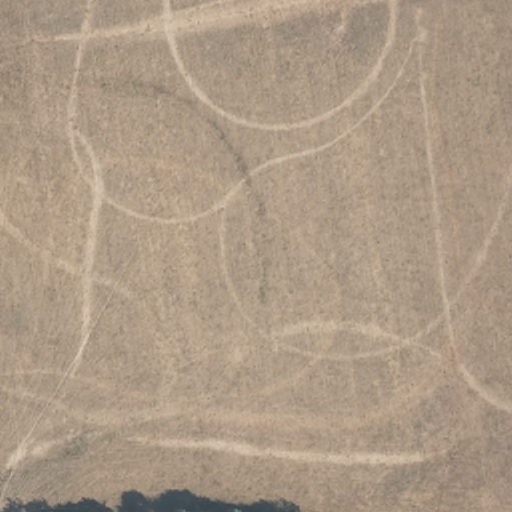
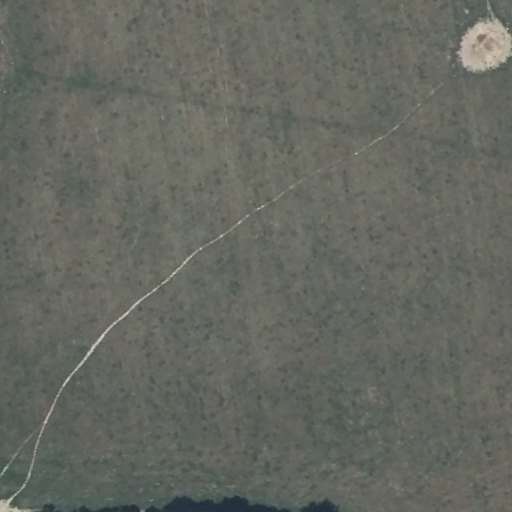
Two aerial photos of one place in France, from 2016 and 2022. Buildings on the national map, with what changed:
[]

